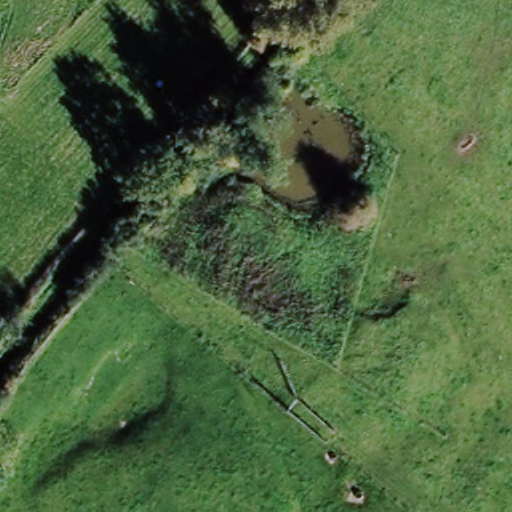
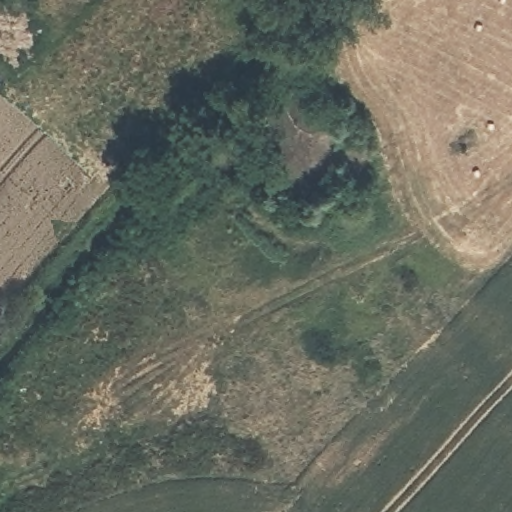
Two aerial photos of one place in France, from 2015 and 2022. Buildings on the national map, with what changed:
[]

